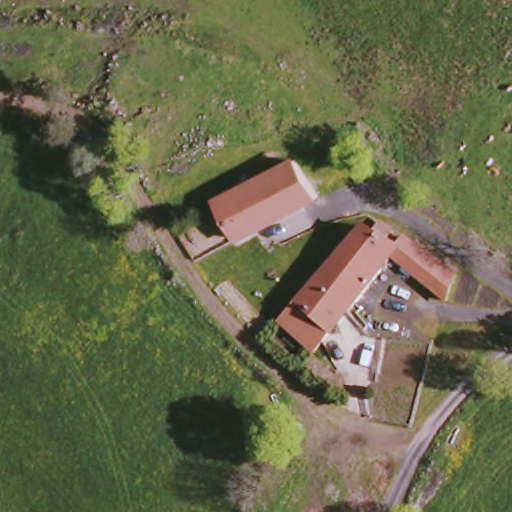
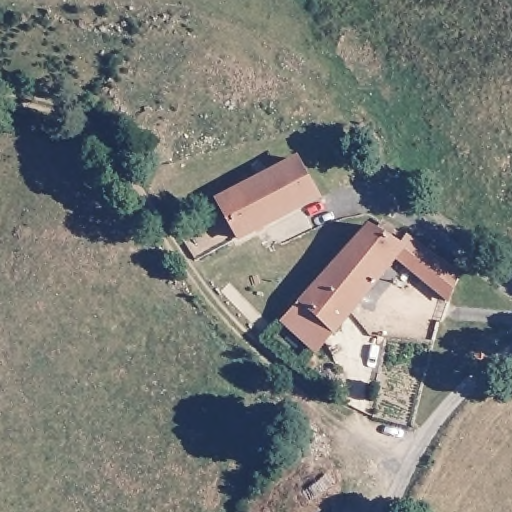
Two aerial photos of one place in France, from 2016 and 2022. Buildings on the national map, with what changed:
unchanged [(213,203),(295,160),(314,197),(234,239),(213,203)]
unchanged [(454,272),(441,307),(391,267),(352,318),(346,312),(329,334),(311,354),(276,324),(292,301),(364,219),(402,246),(454,272)]

